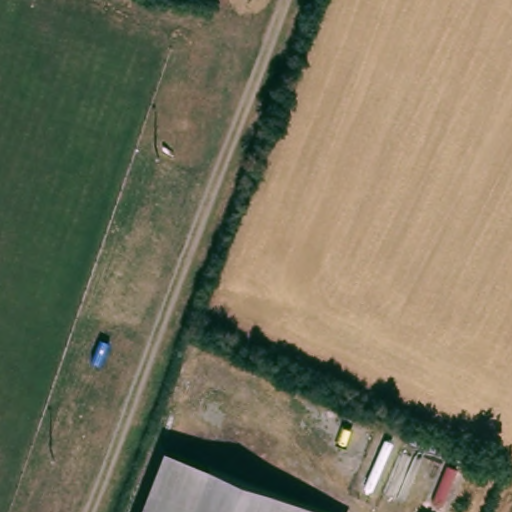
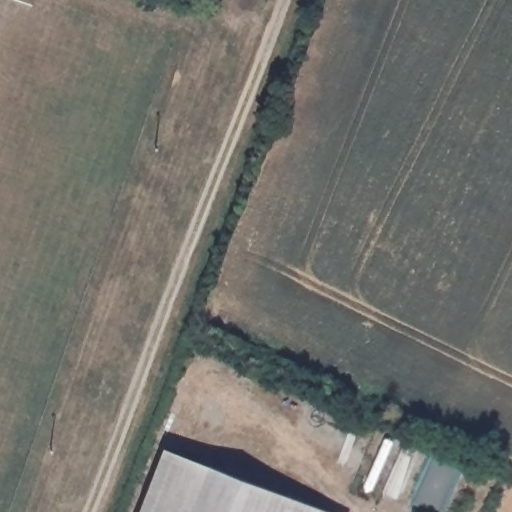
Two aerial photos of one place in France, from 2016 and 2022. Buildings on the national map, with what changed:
unchanged [(142,512),(166,446),(273,486),(263,512),(142,512)]
unchanged [(263,512),(273,486),(342,512),(263,512)]

